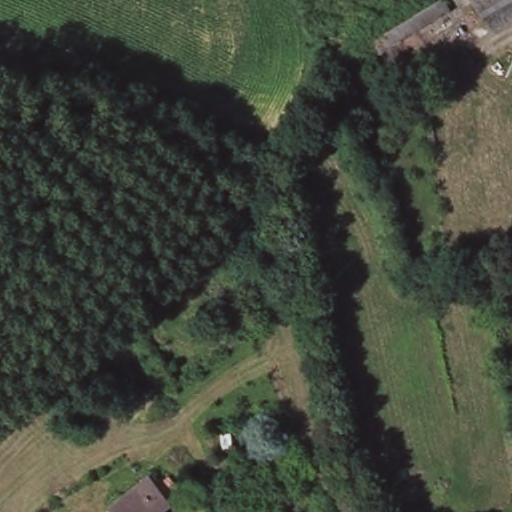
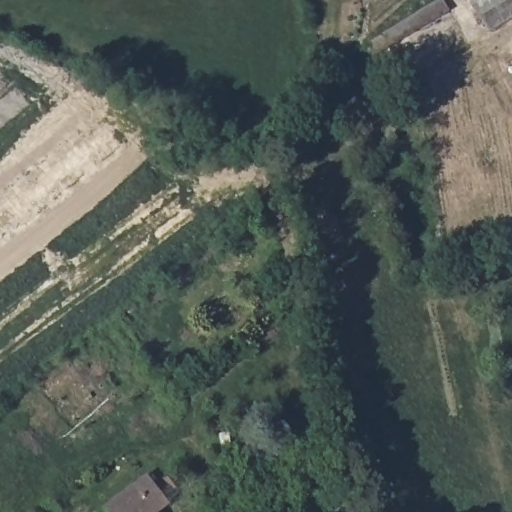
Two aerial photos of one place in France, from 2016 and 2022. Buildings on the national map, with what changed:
unchanged [(439,0),(445,10),(365,52),(361,44),(359,39),(368,34),(431,0),(439,0)]
unchanged [(463,0),(512,0),(512,16),(481,32),(463,0)]
unchanged [(167,500),(152,511),(153,512),(108,512),(102,505),(145,472),(167,500)]

